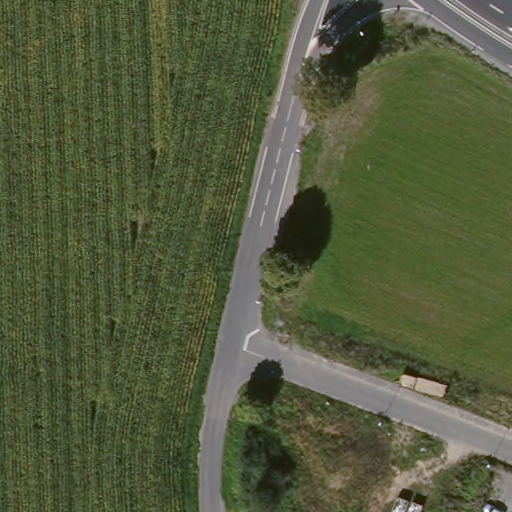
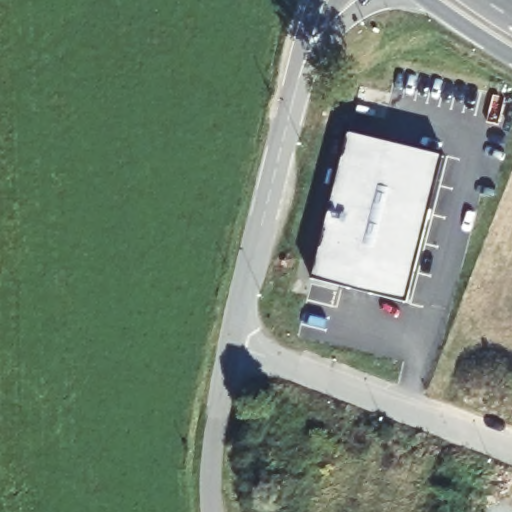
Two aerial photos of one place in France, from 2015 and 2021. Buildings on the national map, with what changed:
new [(347,128),(443,151),(408,299),(312,276),(347,128)]

